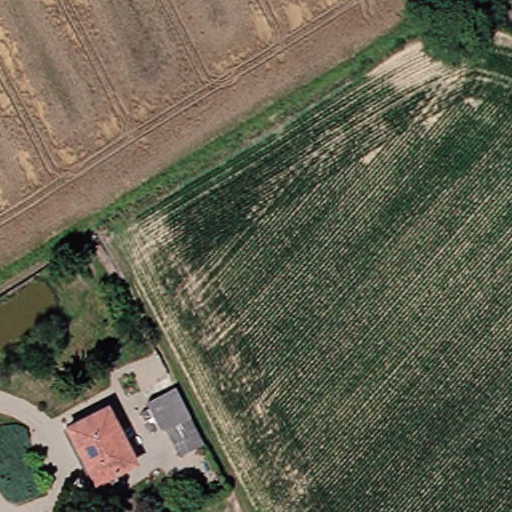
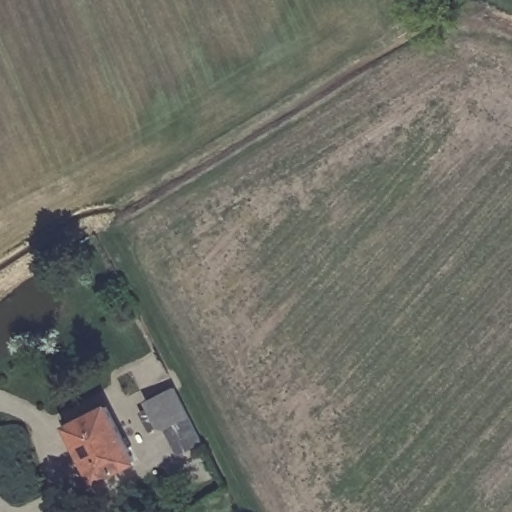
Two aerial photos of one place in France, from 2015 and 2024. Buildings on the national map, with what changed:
unchanged [(163,381),(192,442),(166,454),(152,423),(142,428),(133,409),(143,404),(138,393),(163,381)]
unchanged [(81,473),(58,424),(96,405),(120,455),(81,473)]

